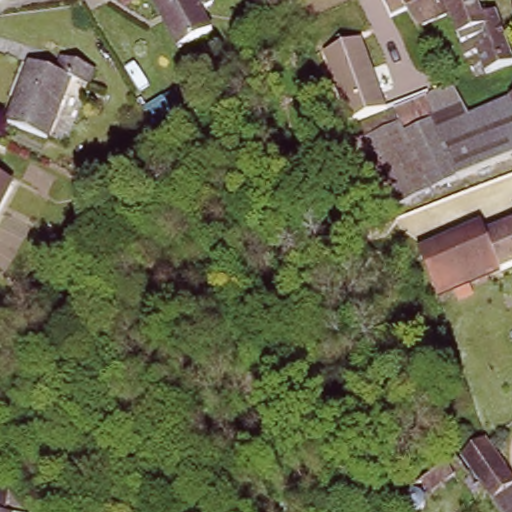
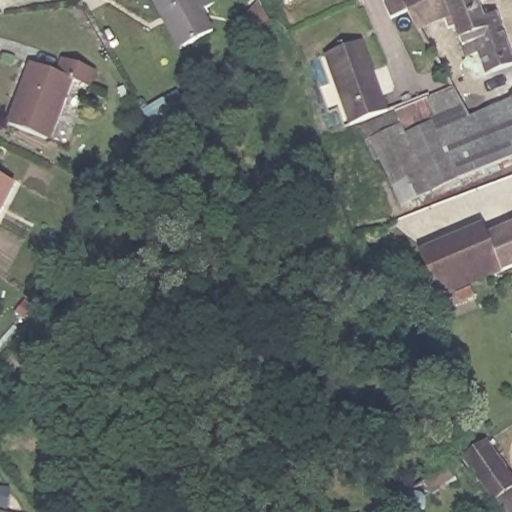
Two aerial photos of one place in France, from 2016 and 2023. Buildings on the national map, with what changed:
unchanged [(165,15),(156,0),(198,0),(217,32),(190,47),(185,50),(165,15)]
unchanged [(412,12),(404,0),(439,0),(412,12)]
unchanged [(485,5),(489,18),(502,13),(512,43),(512,69),(493,76),(480,41),(468,46),(457,15),(421,28),(412,12),(439,0),(500,0),(485,5)]
unchanged [(387,113),(374,118),(349,123),(324,54),(362,38),(387,113)]
unchanged [(9,122),(30,61),(57,71),(62,56),(95,68),(89,85),(70,78),(49,137),(9,122)]
unchanged [(408,197),(386,136),(381,138),(374,118),(452,89),(469,117),(512,101),(512,159),(465,178),(408,197)]
unchanged [(14,182),(0,215),(0,176),(14,182)]
unchanged [(106,224),(110,218),(116,224),(112,229),(106,224)]
unchanged [(490,235),(512,226),(512,269),(506,272),(490,235)]
unchanged [(506,272),(445,298),(426,254),(487,228),(490,235),(506,272)]
unchanged [(482,486),(476,489),(472,484),(477,480),(456,448),(462,446),(483,438),(512,478),(512,483),(500,492),(512,510),(512,512),(499,512),(490,499),(482,486)]
unchanged [(451,474),(428,491),(420,480),(432,471),(443,463),(451,474)]
unchanged [(417,495),(419,495),(421,496),(422,498),(423,499),(424,501),(424,503),(423,505),(422,507),(421,508),(419,509),(417,510),(415,510),(413,509),(411,508),(410,507),(409,505),(409,503),(409,501),(409,499),(410,497),(412,496),(413,495),(415,495),(417,495)]

